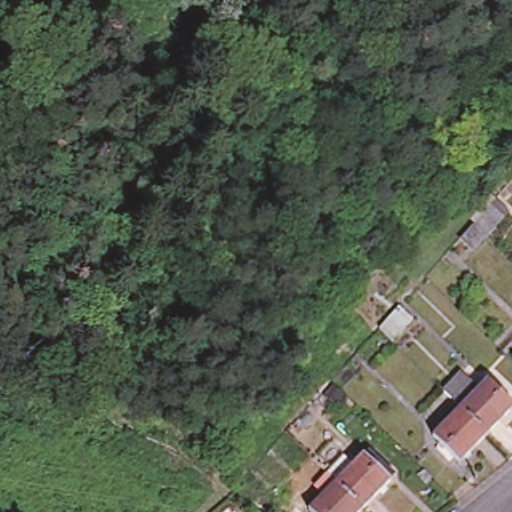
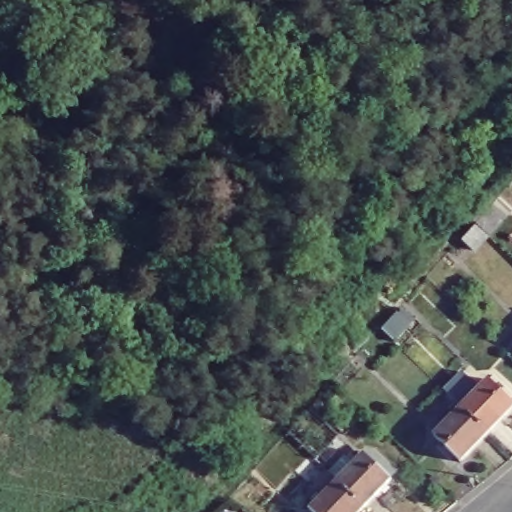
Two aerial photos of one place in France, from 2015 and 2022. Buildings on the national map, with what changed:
unchanged [(492,211),(506,224),(492,239),(477,254),(465,242),(479,226),(492,211)]
unchanged [(392,321),(405,332),(395,342),(384,331),(392,321)]
unchanged [(432,435),(460,407),(444,390),(462,371),(480,387),(488,379),(512,403),(512,406),(486,432),(458,461),(432,435)]
unchanged [(362,453),(388,479),(362,506),(335,480),(362,453)]
unchanged [(357,512),(312,512),(308,508),(335,480),(362,506),(357,512)]

